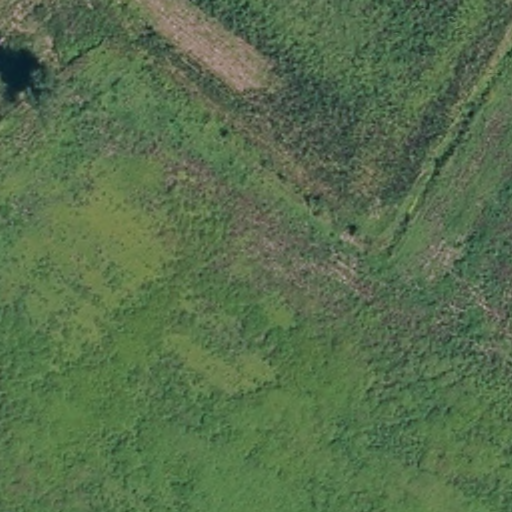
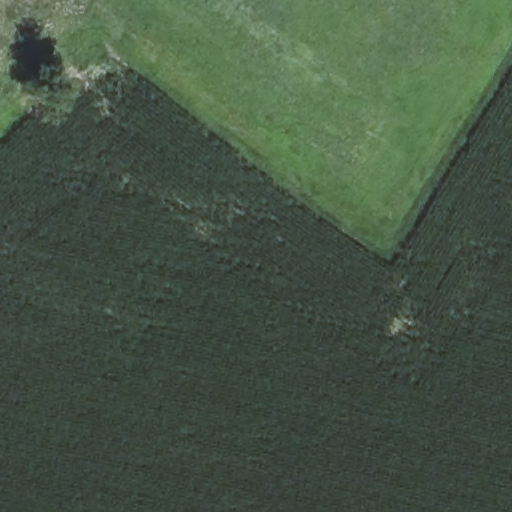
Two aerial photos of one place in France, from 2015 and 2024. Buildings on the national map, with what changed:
[]

